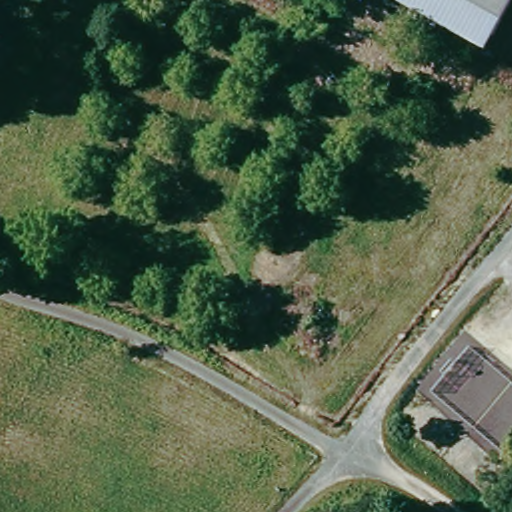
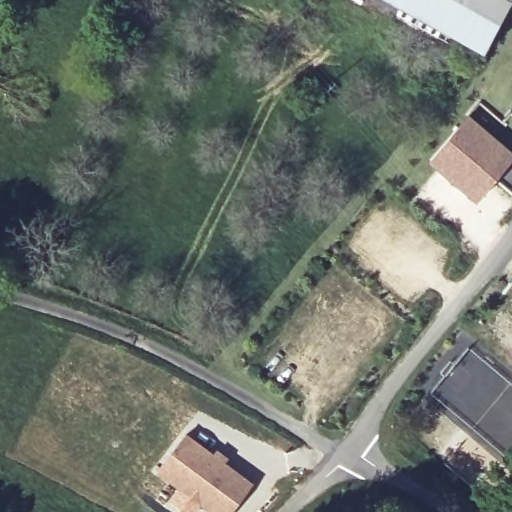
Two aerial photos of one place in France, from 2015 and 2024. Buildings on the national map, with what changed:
unchanged [(482,44),(398,0),(509,0),(482,44)]
new [(477,127),(502,147),(512,155),(512,165),(481,202),(433,164),(469,120),(477,127)]
new [(230,512),(216,512),(157,468),(184,433),(252,484),(230,512)]

